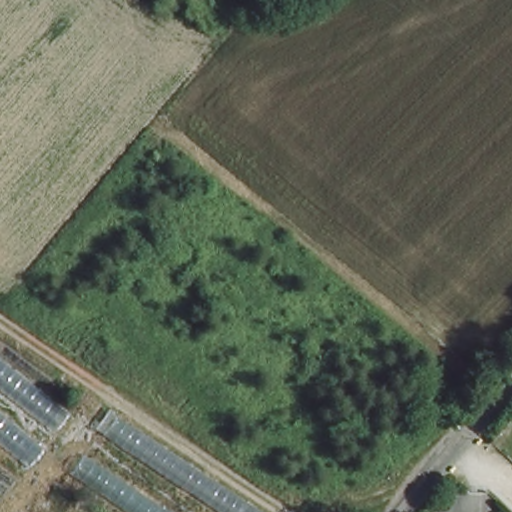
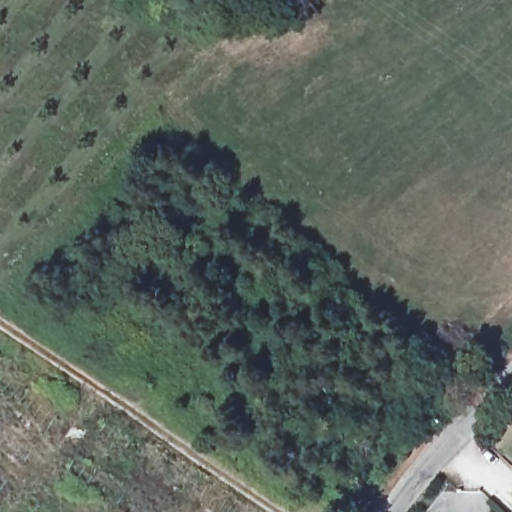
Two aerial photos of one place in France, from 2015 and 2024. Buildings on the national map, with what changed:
demolished [(0,490),(0,358),(65,411),(0,490)]
demolished [(62,476),(110,416),(265,512),(117,512),(62,476)]
new [(10,481),(0,494),(0,472),(10,481)]

